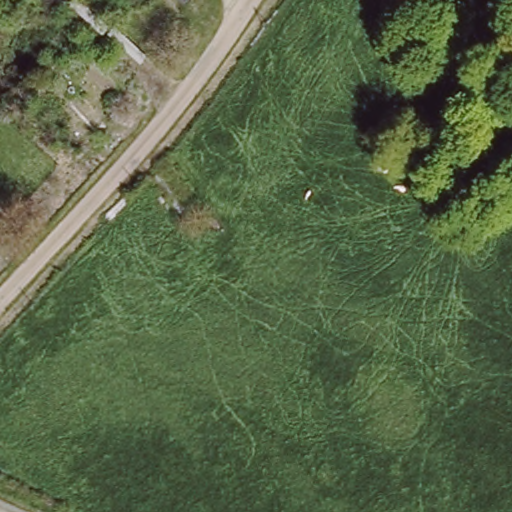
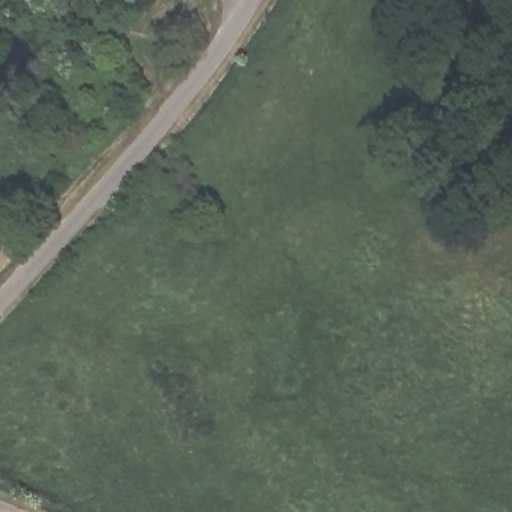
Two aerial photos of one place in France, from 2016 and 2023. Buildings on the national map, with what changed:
unchanged [(184,3),(182,0),(188,0),(184,3)]

